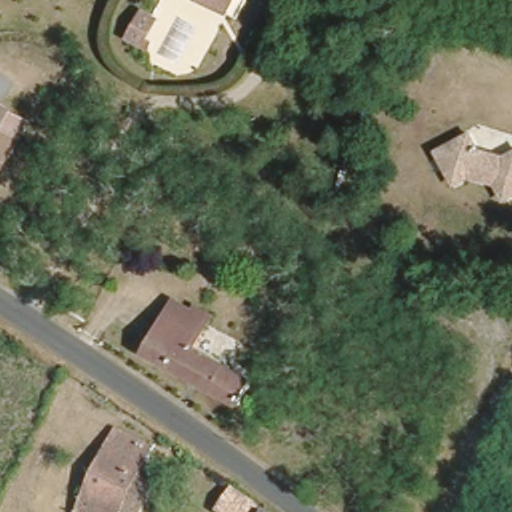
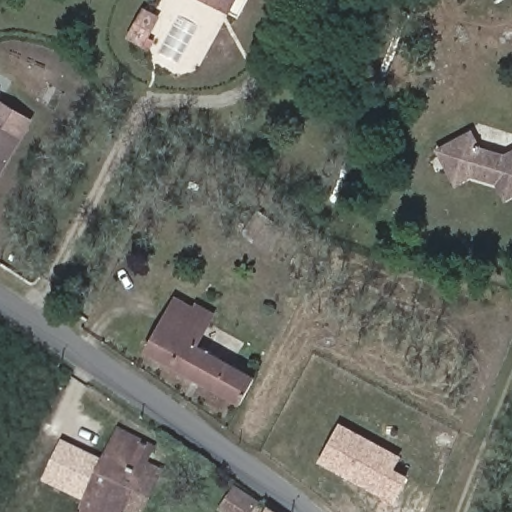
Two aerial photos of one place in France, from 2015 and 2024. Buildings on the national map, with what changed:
unchanged [(213,0),(228,0),(224,6),(213,0)]
unchanged [(141,6),(160,15),(148,34),(156,39),(150,50),(123,37),(141,6)]
unchanged [(29,121),(17,138),(0,165),(0,103),(29,121)]
unchanged [(491,181),(469,176),(451,184),(431,149),(469,129),(478,146),(501,153),(512,149),(512,194),(501,200),(491,181)]
unchanged [(240,229),(258,208),(284,224),(267,247),(240,229)]
unchanged [(170,295),(206,313),(192,340),(254,371),(240,398),(143,349),(170,295)]
new [(320,460),(339,425),(401,458),(395,468),(409,476),(395,501),(320,460)]
new [(130,491),(146,462),(114,442),(119,426),(158,447),(149,464),(162,471),(146,499),(130,491)]
new [(81,499),(42,482),(60,439),(103,460),(81,499)]
unchanged [(146,462),(130,491),(146,499),(139,512),(74,512),(114,442),(146,462)]
unchanged [(245,493),(267,512),(229,512),(231,509),(245,493)]

